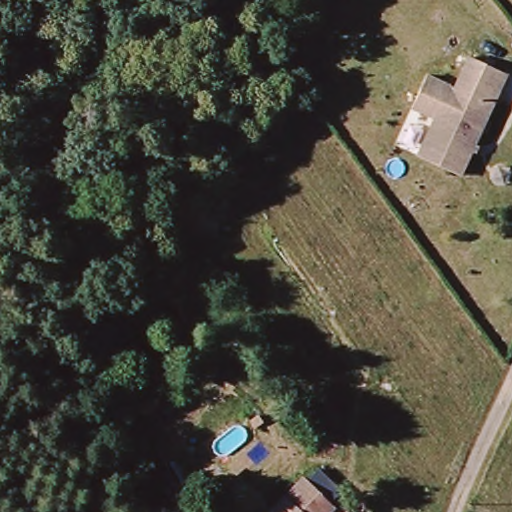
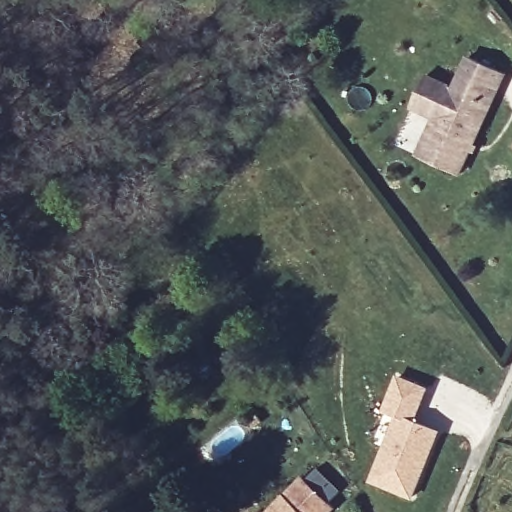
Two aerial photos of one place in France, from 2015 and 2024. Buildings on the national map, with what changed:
unchanged [(505,72),(460,174),(423,157),(440,120),(412,107),(426,75),(455,88),(469,56),(505,72)]
new [(414,420),(441,430),(414,498),(371,480),(397,416),(384,409),(399,374),(430,388),(414,420)]
unchanged [(309,474),(332,497),(321,508),(324,511),(323,512),(266,512),(295,482),(298,486),(309,474)]

